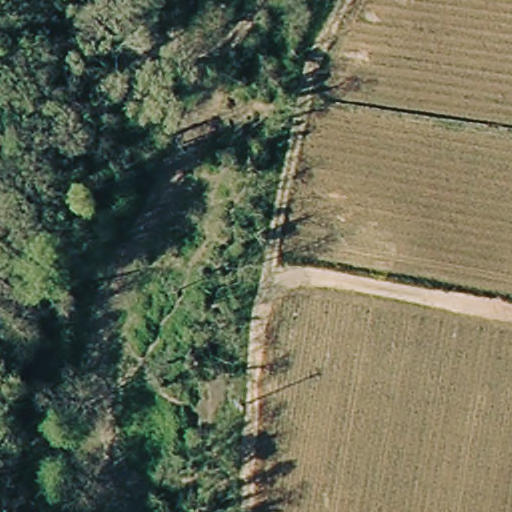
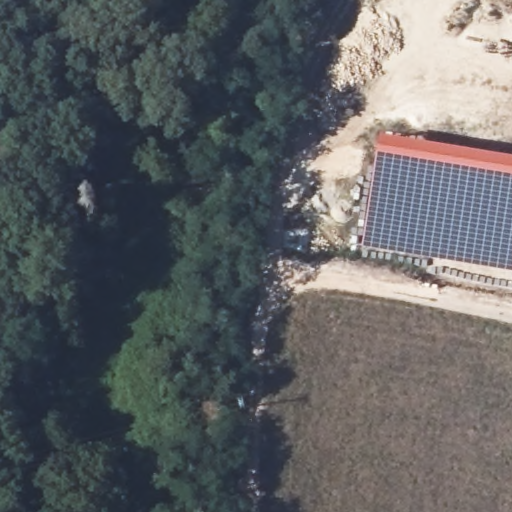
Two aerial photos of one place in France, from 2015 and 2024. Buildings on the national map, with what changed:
new [(363,247),(381,137),(512,159),(512,272),(363,247)]

